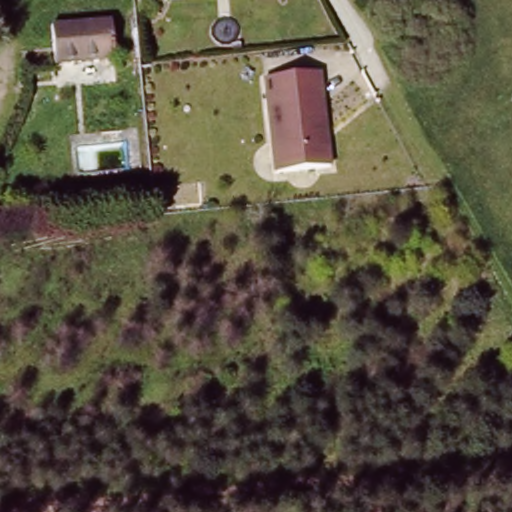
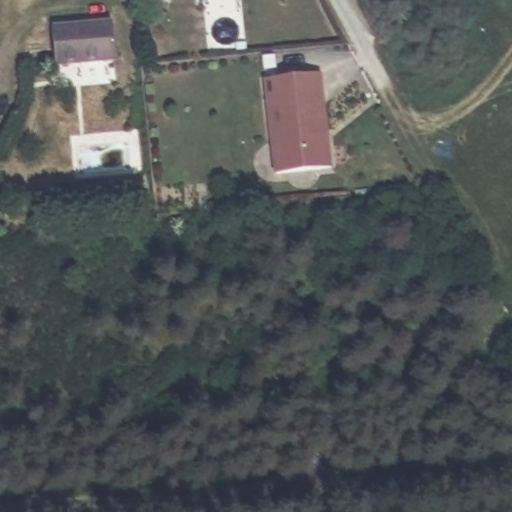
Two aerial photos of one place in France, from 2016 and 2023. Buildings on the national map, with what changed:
unchanged [(47,20),(107,15),(111,54),(51,59),(47,20)]
unchanged [(260,74),(312,69),(320,162),(268,166),(260,74)]

